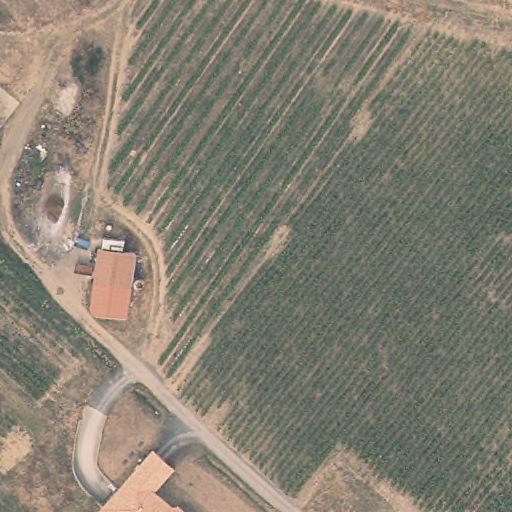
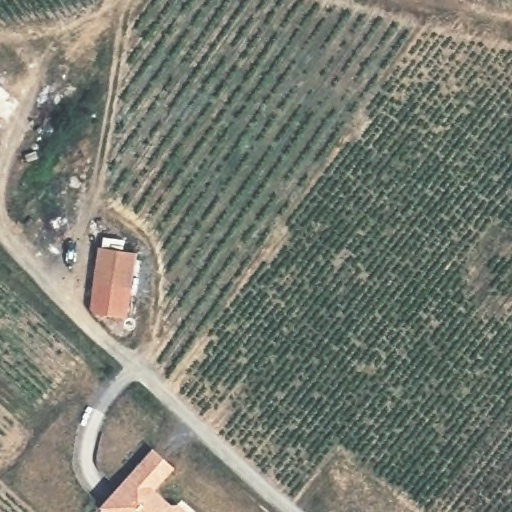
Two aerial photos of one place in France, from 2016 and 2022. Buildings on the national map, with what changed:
unchanged [(102,309),(95,306),(97,292),(102,244),(141,248),(134,295),(132,310),(115,310),(110,310),(102,309)]
unchanged [(155,491),(171,505),(173,502),(185,512),(104,512),(99,507),(153,448),(175,467),(155,491)]

